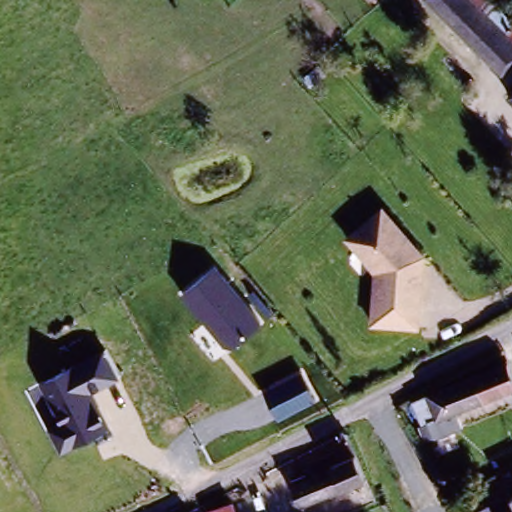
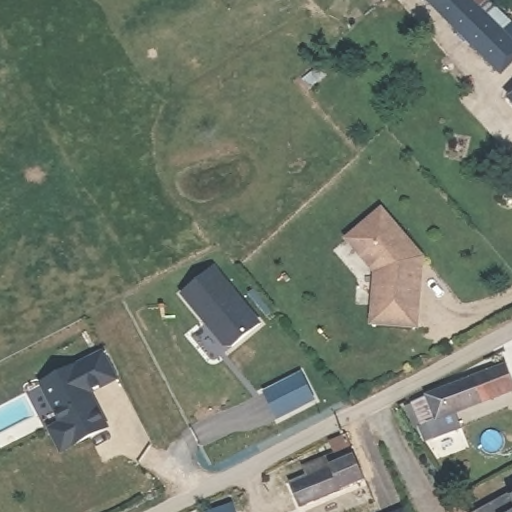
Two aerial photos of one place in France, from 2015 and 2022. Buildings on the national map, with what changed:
unchanged [(418,0),(482,0),(492,9),(484,14),(507,32),(512,27),(512,60),(497,76),(416,1),(418,0)]
unchanged [(512,92),(512,95),(511,93),(512,92)]
unchanged [(369,328),(371,274),(342,240),(380,208),(425,258),(419,330),(369,328)]
unchanged [(261,321),(228,349),(183,295),(215,268),(261,321)]
unchanged [(120,380),(94,393),(111,429),(63,451),(49,425),(60,421),(42,382),(104,353),(120,380)]
unchanged [(302,371),(315,400),(277,418),(263,390),(302,371)]
unchanged [(412,400),(500,374),(508,394),(418,422),(412,400)]
unchanged [(289,487),(306,479),(301,470),(338,453),(332,440),(341,435),(363,478),(300,510),(289,487)]
unchanged [(228,502),(233,512),(207,512),(228,502)]

